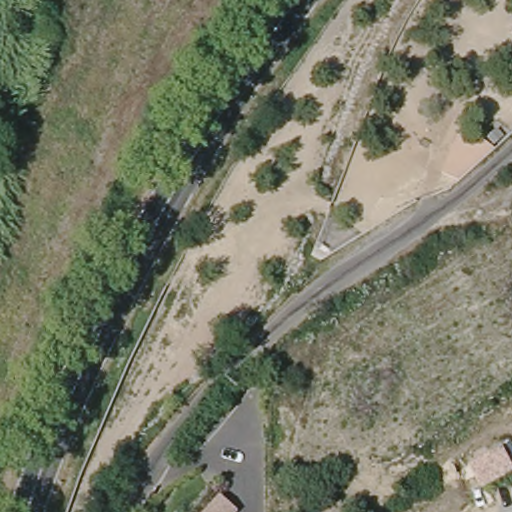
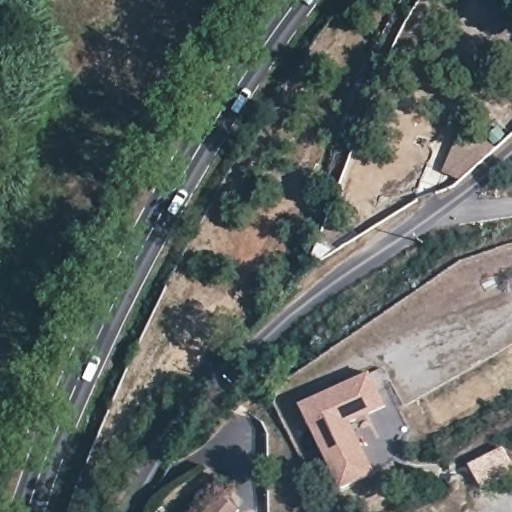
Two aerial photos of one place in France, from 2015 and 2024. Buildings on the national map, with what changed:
unchanged [(440,174),(458,136),(491,146),(457,185),(440,174)]
new [(386,408),(352,423),(377,474),(340,492),(299,404),(369,374),(386,408)]
unchanged [(465,469),(500,452),(512,471),(478,489),(465,469)]
unchanged [(236,512),(207,512),(222,496),(236,512)]

